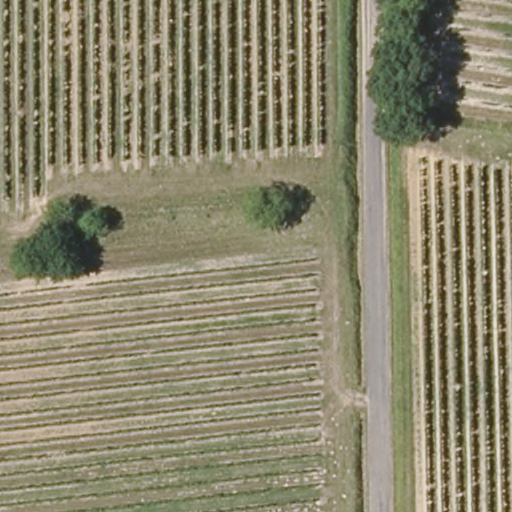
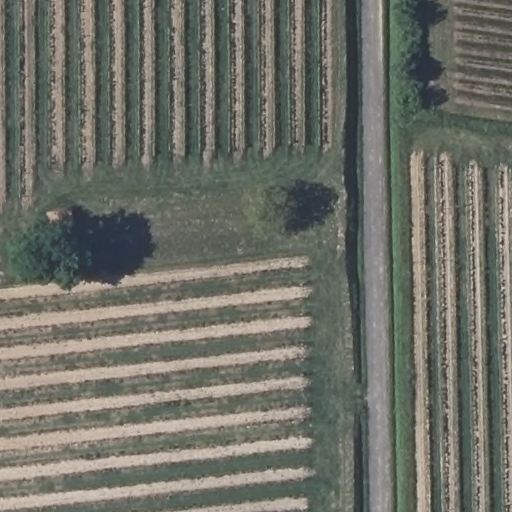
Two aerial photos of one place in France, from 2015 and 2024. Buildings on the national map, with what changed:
unchanged [(69,243),(51,244),(50,236),(50,222),(69,221),(70,234),(69,243)]

